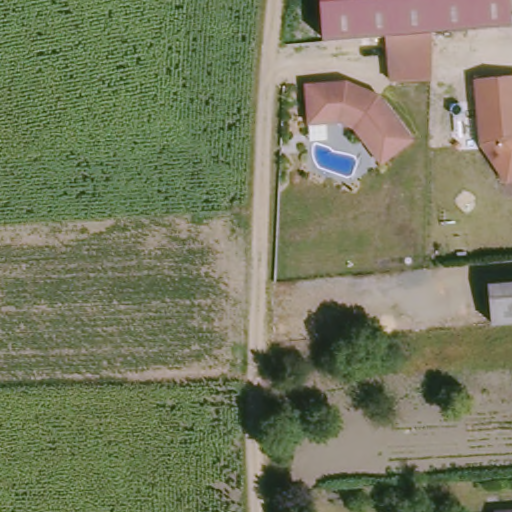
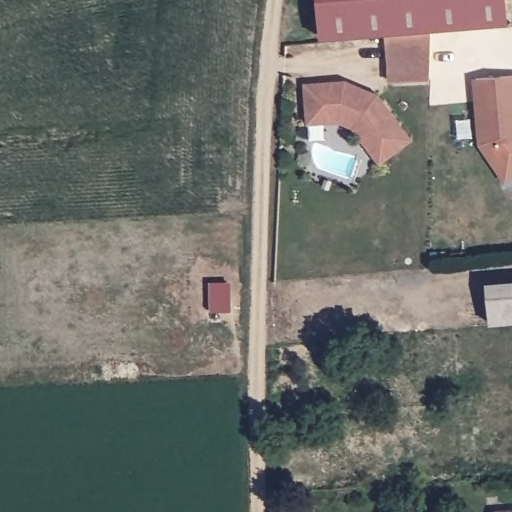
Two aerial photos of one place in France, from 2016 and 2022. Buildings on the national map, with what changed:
unchanged [(320,0),(510,0),(512,19),(323,36),(320,0)]
unchanged [(431,31),(431,75),(389,78),(385,35),(431,31)]
unchanged [(507,181),(492,158),(484,144),(480,79),(512,77),(512,178),(507,181)]
unchanged [(310,118),(309,79),(349,78),(380,94),(410,143),(377,163),(354,125),(340,117),(310,118)]
unchanged [(487,298),(487,282),(512,280),(512,296),(487,298)]
unchanged [(489,325),(487,298),(512,296),(512,324),(489,325)]
unchanged [(512,509),(512,512),(493,512),(494,510),(512,509)]

